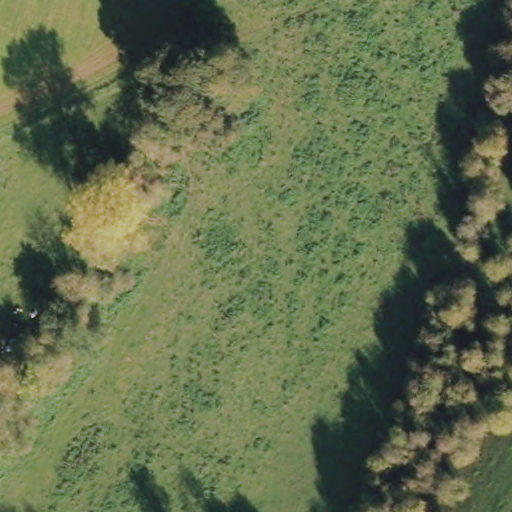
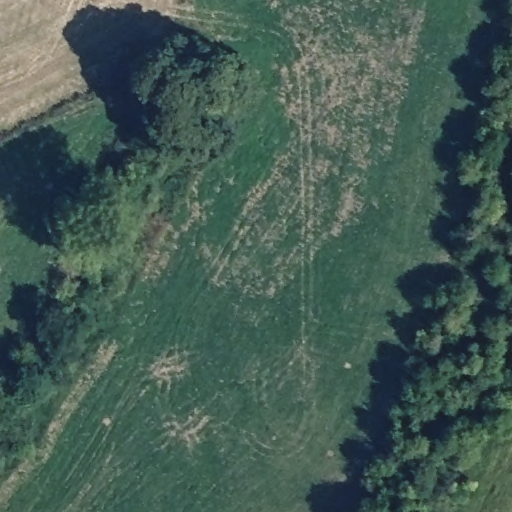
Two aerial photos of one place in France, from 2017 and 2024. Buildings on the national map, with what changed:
unchanged [(206,104),(183,97),(191,77),(212,84),(206,104)]

